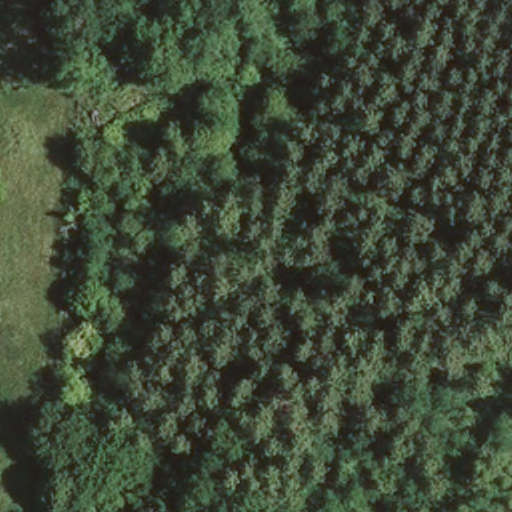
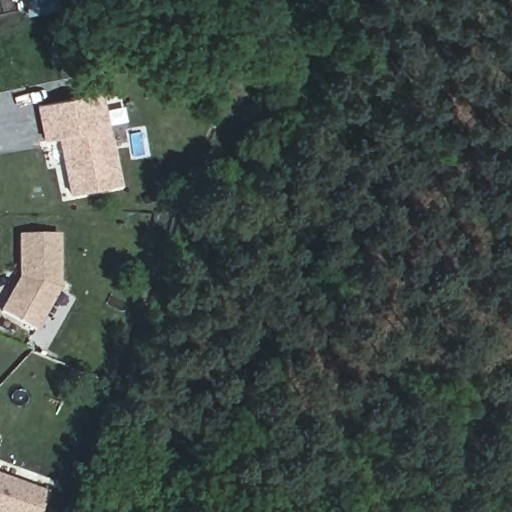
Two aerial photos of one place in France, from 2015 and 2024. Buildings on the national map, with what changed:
new [(57,139),(42,141),(35,106),(103,94),(123,184),(69,195),(57,139)]
new [(20,279),(20,235),(58,235),(58,289),(35,330),(1,312),(20,279)]
new [(44,493),(38,512),(0,512),(0,478),(44,493)]

